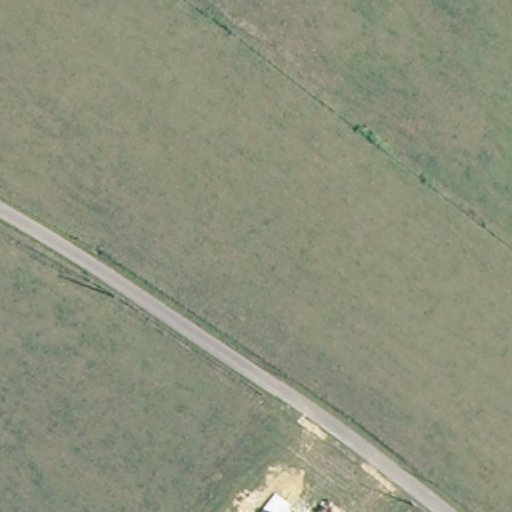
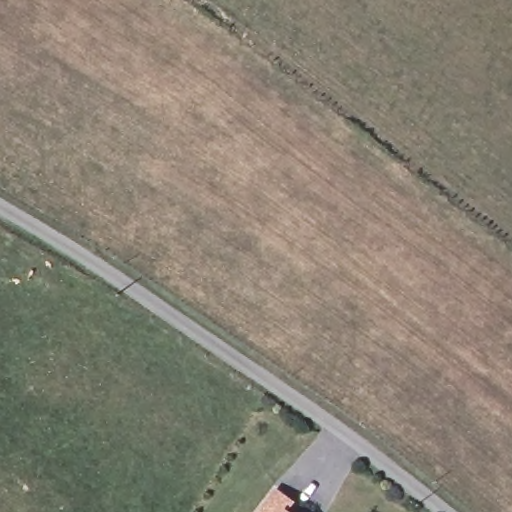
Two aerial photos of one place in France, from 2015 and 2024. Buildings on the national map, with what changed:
new [(273,490),(292,503),(285,512),(256,512),(273,490)]

